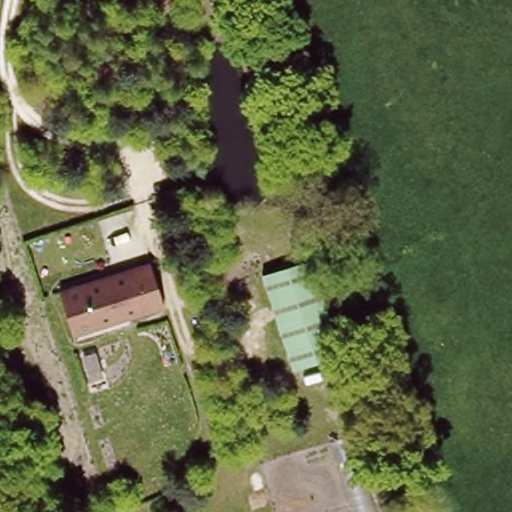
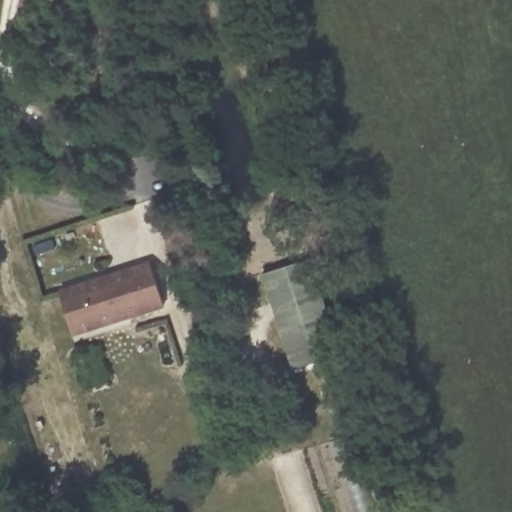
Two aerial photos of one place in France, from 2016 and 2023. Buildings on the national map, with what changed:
unchanged [(311,257),(340,356),(292,371),(262,273),(311,257)]
unchanged [(164,305),(72,335),(57,291),(152,259),(164,305)]

